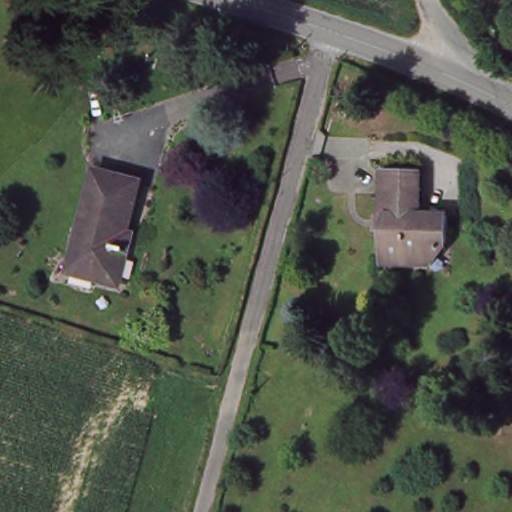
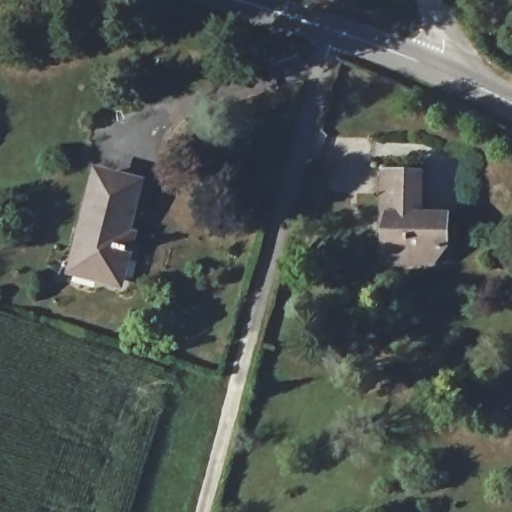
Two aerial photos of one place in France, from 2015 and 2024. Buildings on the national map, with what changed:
unchanged [(133,248),(124,245),(115,276),(70,264),(95,169),(134,179),(120,230),(137,234),(133,248)]
unchanged [(385,232),(385,214),(377,214),(378,173),(415,174),(414,215),(445,216),(445,246),(420,245),(420,263),(379,262),(379,232),(385,232)]

